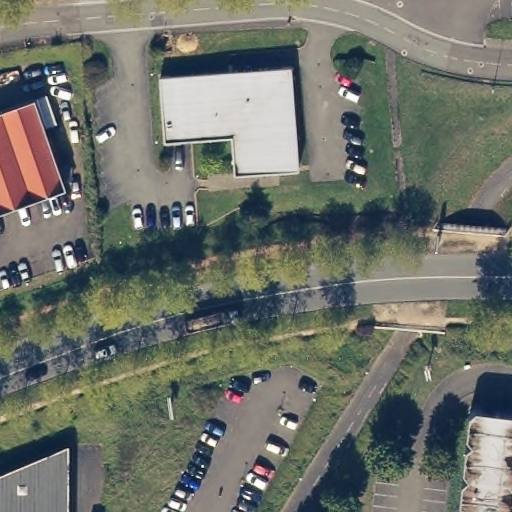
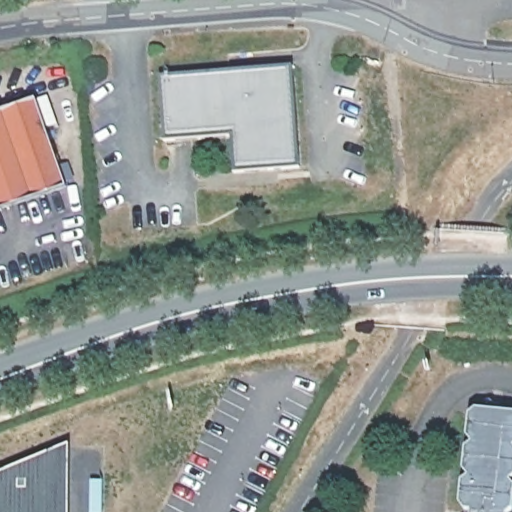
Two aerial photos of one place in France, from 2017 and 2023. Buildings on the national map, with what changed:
unchanged [(160,71),(292,61),(299,163),(235,168),(232,131),(165,136),(160,71)]
unchanged [(35,94),(66,182),(0,206),(0,106),(35,94)]
unchanged [(477,404),(512,408),(512,476),(511,477),(512,478),(512,512),(465,512),(466,506),(460,500),(463,477),(469,472),(464,466),(466,444),(472,439),(467,432),(469,410),(477,404)]
unchanged [(68,446),(68,512),(0,512),(0,474),(68,446)]

